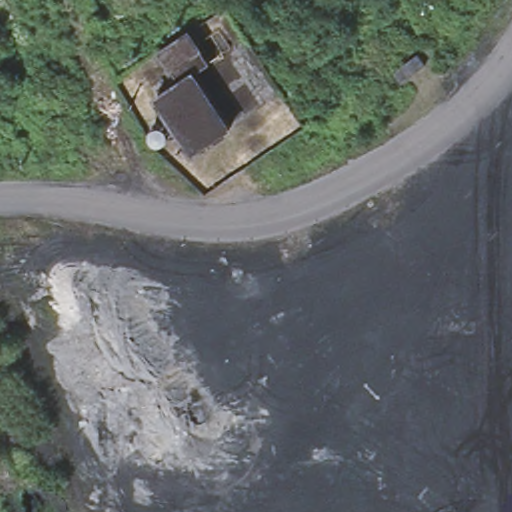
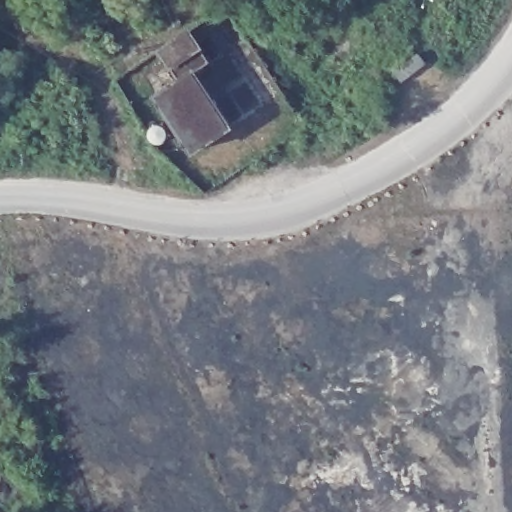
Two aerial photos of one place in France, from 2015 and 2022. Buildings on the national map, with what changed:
unchanged [(206,60),(193,70),(228,121),(187,149),(151,96),(174,80),(155,51),(186,31),(206,60)]
unchanged [(396,64),(421,46),(429,56),(404,75),(396,64)]
unchanged [(166,140),(158,141),(152,132),(159,123),(168,125),(171,133),(166,140)]

